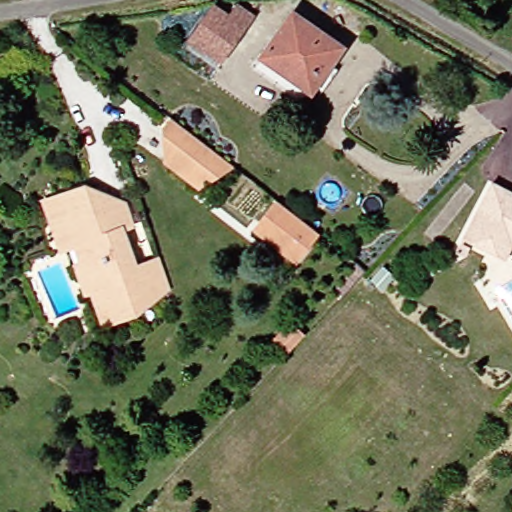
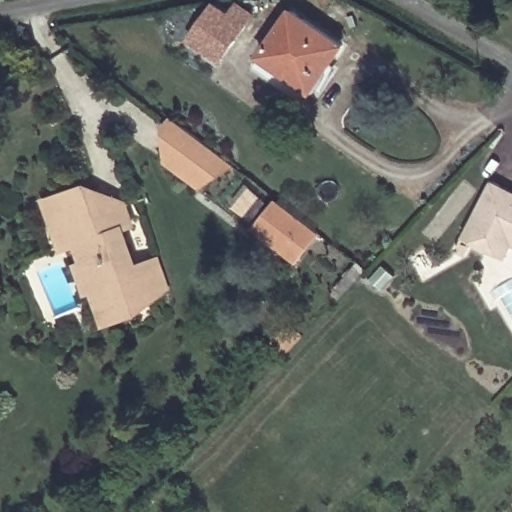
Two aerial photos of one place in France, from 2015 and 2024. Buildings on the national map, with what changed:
unchanged [(193,24),(208,0),(251,0),(245,7),(220,44),(193,24)]
unchanged [(324,74),(319,70),(306,89),(296,81),(255,54),(287,11),(332,43),(319,60),(329,67),(324,74)]
unchanged [(160,155),(151,133),(164,119),(222,165),(203,189),(160,155)]
unchanged [(494,240),(490,251),(459,235),(488,179),(512,191),(512,249),(494,240)]
unchanged [(94,320),(85,295),(74,298),(64,268),(75,265),(79,263),(72,244),(59,247),(52,225),(43,200),(55,196),(88,186),(120,204),(129,226),(119,229),(133,267),(155,260),(165,285),(134,308),(131,310),(94,320)]
unchanged [(275,200),(322,237),(302,262),(255,228),(275,200)]

